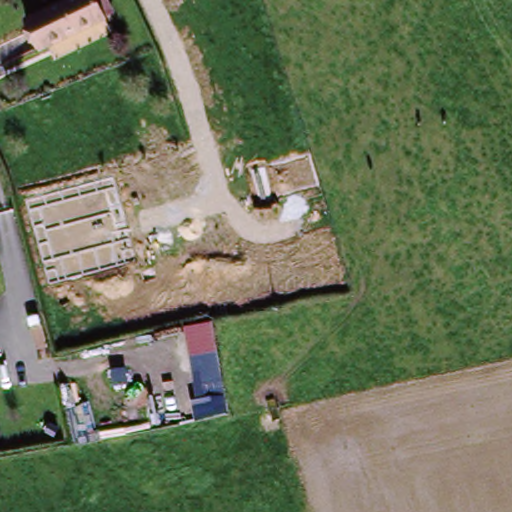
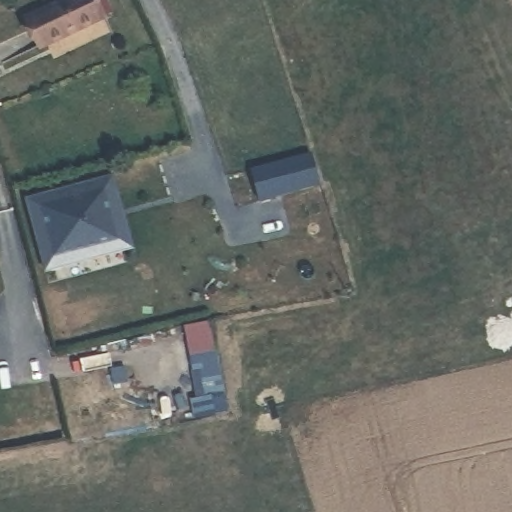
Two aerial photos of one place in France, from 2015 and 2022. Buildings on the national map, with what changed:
unchanged [(29,27),(84,0),(93,0),(94,1),(96,0),(106,0),(117,22),(105,27),(43,56),(29,27)]
new [(134,250),(44,273),(22,199),(114,174),(134,250)]
unchanged [(229,411),(196,417),(193,395),(199,394),(186,328),(212,322),(229,411)]

